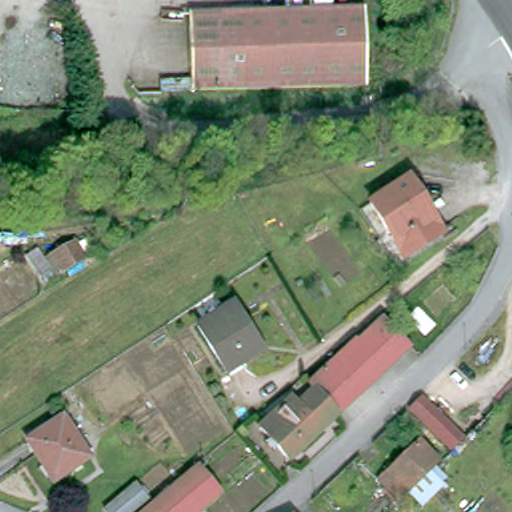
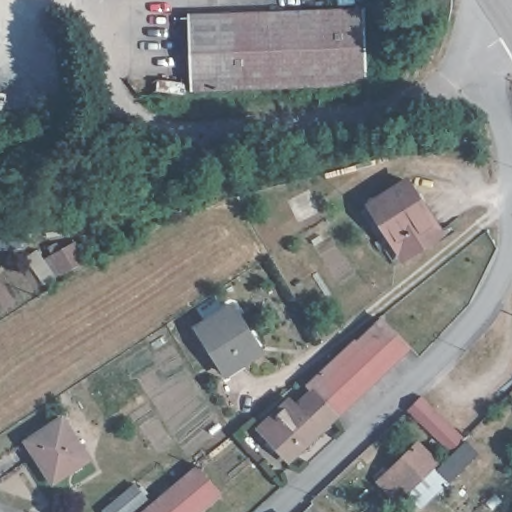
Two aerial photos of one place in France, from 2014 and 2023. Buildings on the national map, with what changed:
unchanged [(190,92),(189,14),(365,9),(367,86),(190,92)]
unchanged [(444,236),(405,260),(393,241),(382,248),(360,211),(409,181),(444,236)]
unchanged [(86,261),(63,275),(52,257),(76,244),(86,261)]
unchanged [(263,354),(228,376),(198,329),(233,306),(263,354)]
unchanged [(312,391),(308,386),(356,342),(358,343),(382,321),(410,350),(337,418),(312,391)]
unchanged [(290,461),(260,428),(292,400),(297,405),(312,391),(337,418),(290,461)]
unchanged [(422,425),(437,409),(465,435),(449,451),(422,425)]
unchanged [(92,455),(54,480),(25,437),(64,412),(92,455)]
unchanged [(397,466),(420,444),(438,463),(416,485),(406,495),(387,476),(397,466)]
unchanged [(201,512),(145,512),(199,467),(222,494),(201,512)]
unchanged [(442,486),(422,506),(411,495),(432,475),(442,486)]
unchanged [(134,512),(105,512),(137,486),(149,500),(134,512)]

